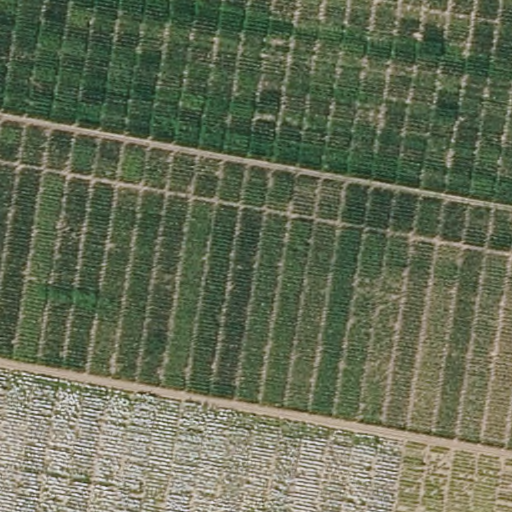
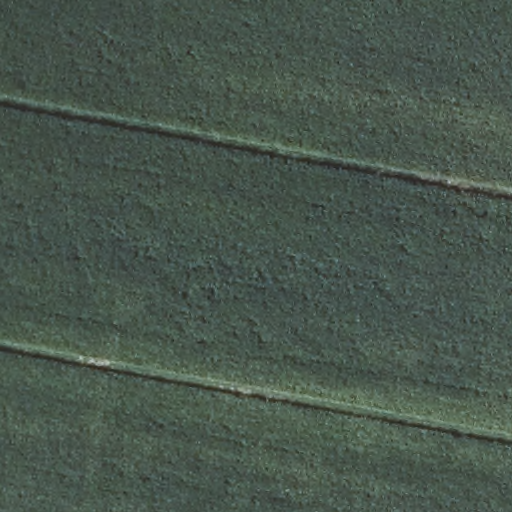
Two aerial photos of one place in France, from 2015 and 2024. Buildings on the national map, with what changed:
[]

